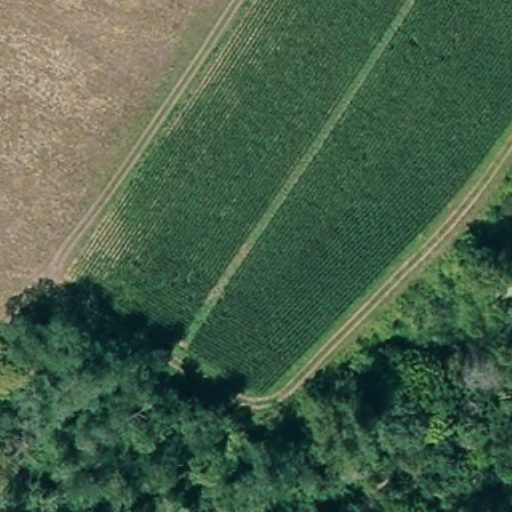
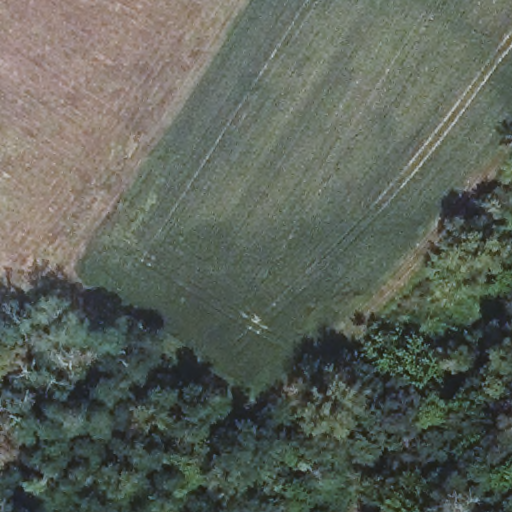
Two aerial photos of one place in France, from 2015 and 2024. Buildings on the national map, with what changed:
unchanged [(230,470),(221,463),(236,437),(247,444),(230,470)]

